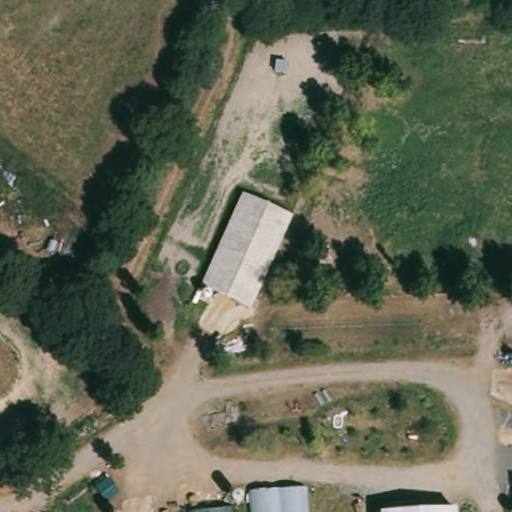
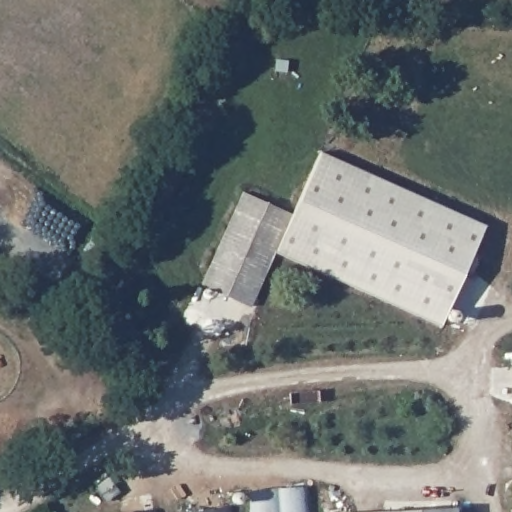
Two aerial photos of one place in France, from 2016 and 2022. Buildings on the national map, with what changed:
new [(297,216),(292,213),(320,152),(485,226),(442,325),(281,254),(297,216)]
unchanged [(259,310),(217,296),(215,302),(202,296),(244,191),(297,216),(259,310)]
unchanged [(254,491),(307,487),(309,512),(255,512),(254,491)]
unchanged [(190,512),(232,505),(231,492),(243,490),(245,507),(235,509),(235,512),(191,512),(190,512)]
unchanged [(455,509),(455,512),(405,512),(455,509)]

